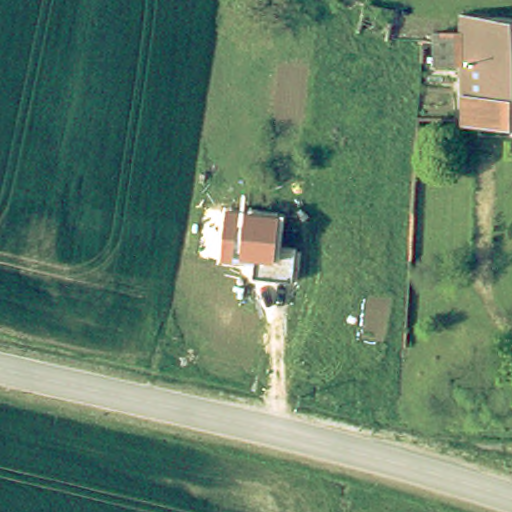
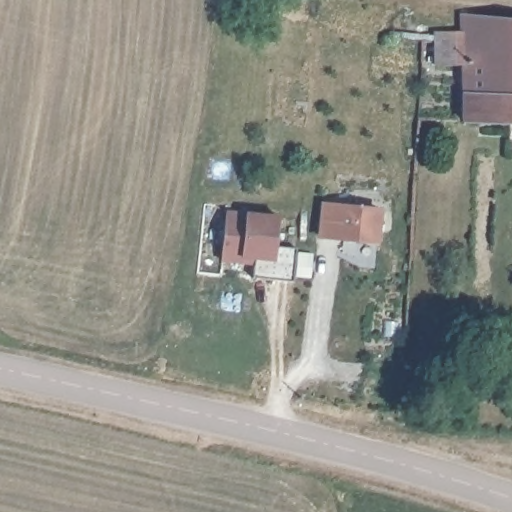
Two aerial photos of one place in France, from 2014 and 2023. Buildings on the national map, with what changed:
unchanged [(464,116),(462,57),(434,57),(434,26),(462,26),(462,5),(483,7),(512,10),(512,117),(464,116)]
new [(378,246),(317,239),(321,203),(382,210),(378,246)]
unchanged [(286,216),(282,245),(298,248),(294,279),(254,276),(255,261),(231,257),(229,263),(219,261),(224,209),(286,216)]

